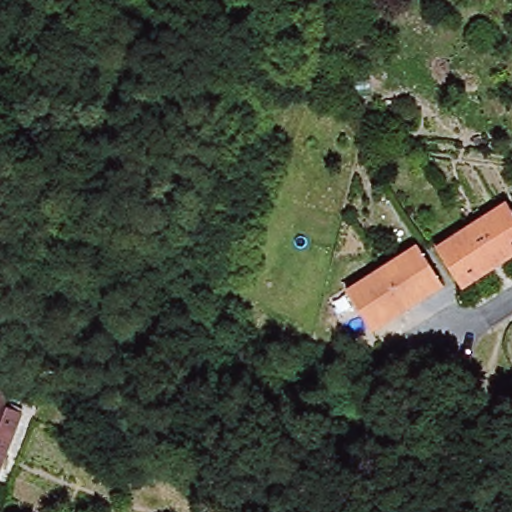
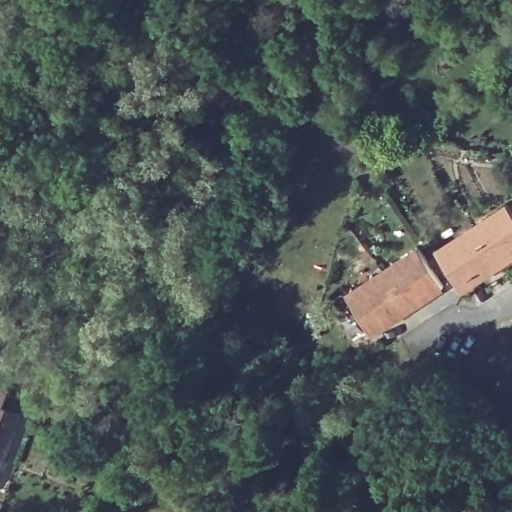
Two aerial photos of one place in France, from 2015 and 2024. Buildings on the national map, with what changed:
unchanged [(435,253),(505,208),(512,220),(512,256),(510,258),(460,290),(450,277),(435,253)]
unchanged [(371,333),(348,296),(416,251),(437,285),(439,289),(388,323),(371,333)]
unchanged [(0,402),(0,391),(3,392),(0,402)]
unchanged [(0,451),(0,407),(16,416),(0,451)]

